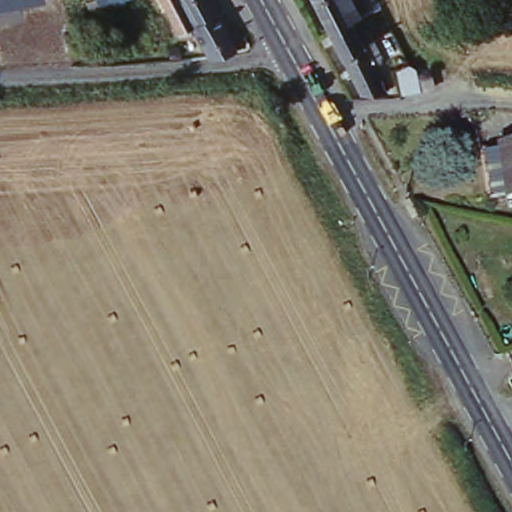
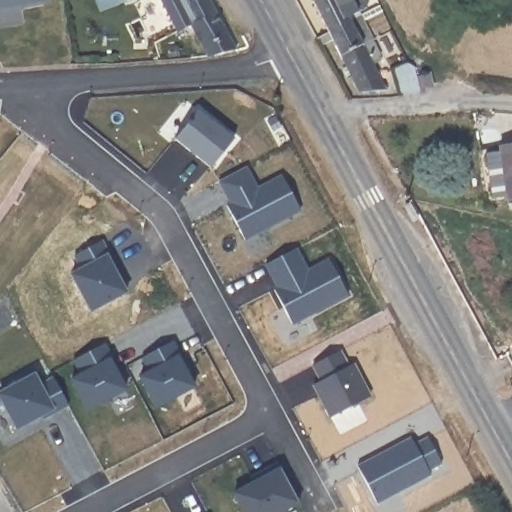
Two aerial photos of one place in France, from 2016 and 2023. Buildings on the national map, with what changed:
unchanged [(0,7),(0,0),(45,0),(46,0),(0,7)]
unchanged [(98,0),(114,0),(101,5),(98,0)]
unchanged [(180,19),(169,0),(217,0),(243,48),(216,54),(194,14),(180,19)]
unchanged [(352,6),(344,10),(321,21),(309,0),(349,0),(350,3),(352,6)]
unchanged [(344,10),(375,71),(379,70),(381,74),(378,76),(378,78),(351,80),(321,21),(344,10)]
new [(200,110),(235,139),(212,168),(176,138),(200,110)]
unchanged [(497,197),(489,153),(504,150),(503,146),(512,145),(512,194),(497,197)]
new [(302,211),(246,240),(228,205),(235,202),(231,194),(228,196),(220,181),(247,167),(259,189),(284,177),(302,211)]
new [(76,255),(103,240),(110,255),(109,256),(128,292),(92,311),(72,274),(83,269),(76,255)]
new [(309,272),(331,260),(350,295),(294,324),(275,289),(281,286),(278,279),(276,280),(268,264),(297,249),(309,272)]
new [(141,377),(151,371),(143,357),(173,341),(182,357),(180,358),(196,387),(157,407),(141,377)]
new [(82,374),(75,360),(106,344),(114,359),(111,361),(127,389),(89,410),(71,379),(82,374)]
new [(332,418),(315,384),(321,382),(313,366),(341,351),(349,367),(354,364),(372,397),(332,418)]
new [(56,413),(54,409),(18,429),(0,396),(0,393),(35,374),(41,384),(54,378),(70,406),(56,413)]
new [(412,438),(416,444),(429,437),(443,464),(430,471),(433,475),(378,504),(358,466),(412,438)]
new [(235,493),(266,477),(256,482),(252,476),(263,472),(279,463),(300,502),(282,512),(245,512),(235,493)]

